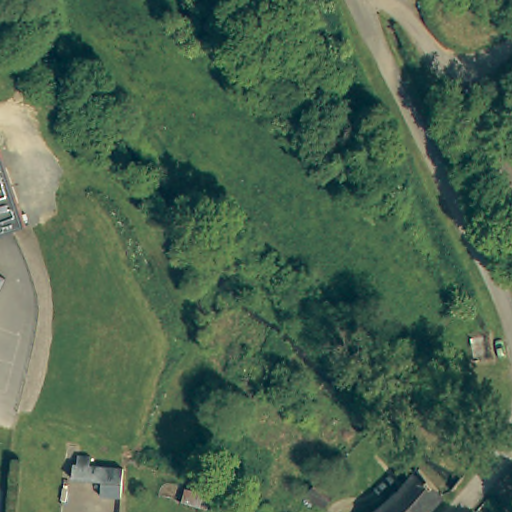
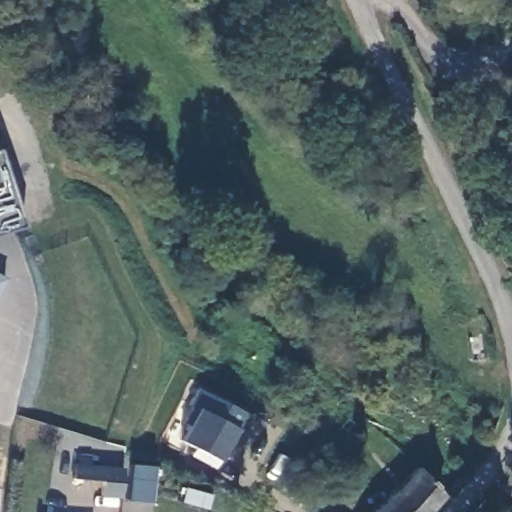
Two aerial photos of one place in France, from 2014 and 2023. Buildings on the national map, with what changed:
unchanged [(24,226),(0,235),(0,153),(24,226)]
unchanged [(5,278),(0,288),(0,275),(5,278)]
new [(189,400),(197,385),(247,413),(237,429),(248,433),(239,451),(235,449),(227,462),(221,461),(216,468),(190,455),(194,448),(181,441),(198,407),(189,400)]
new [(153,501),(127,499),(129,462),(156,465),(153,501)]
unchanged [(102,498),(103,483),(73,481),(74,466),(124,470),(122,499),(102,498)]
unchanged [(442,495),(427,512),(381,512),(398,497),(417,472),(442,495)]

